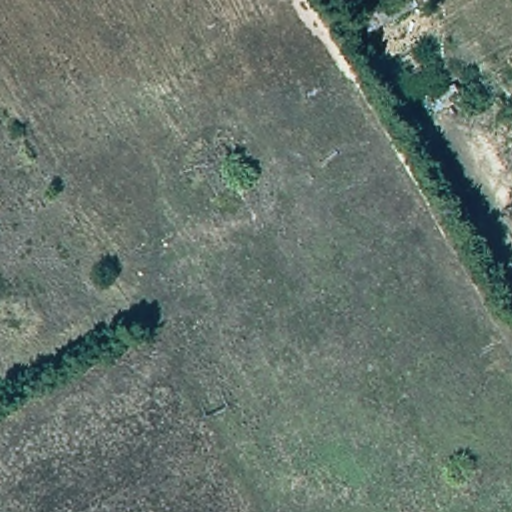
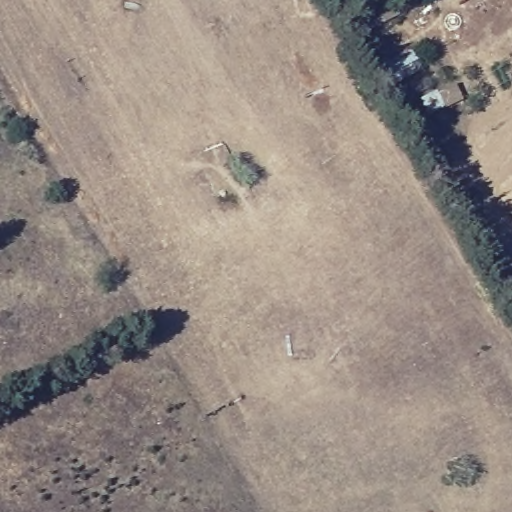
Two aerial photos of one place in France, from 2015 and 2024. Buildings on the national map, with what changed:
unchanged [(337,0),(343,0),(339,3),(337,0)]

